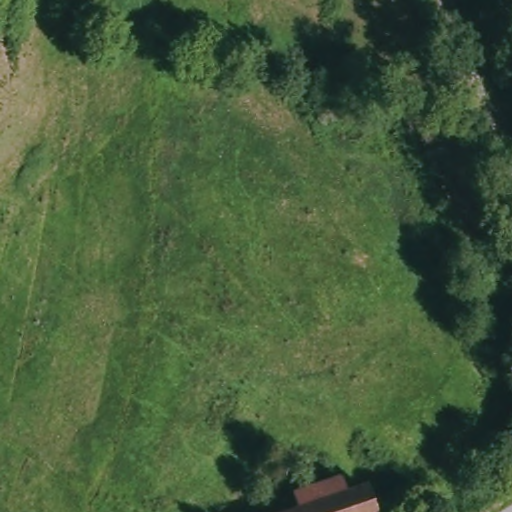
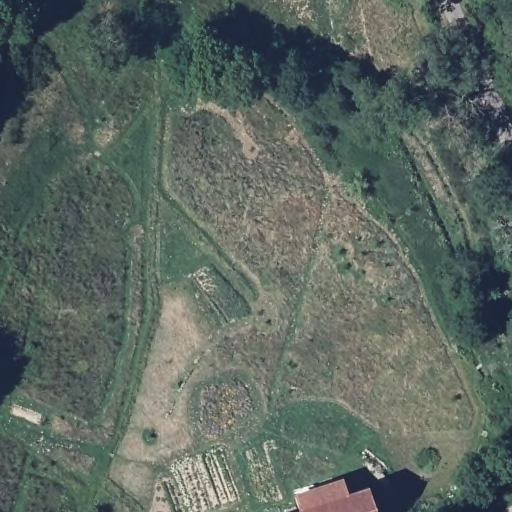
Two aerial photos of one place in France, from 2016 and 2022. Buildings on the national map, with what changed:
unchanged [(349,498),(371,491),(378,512),(309,512),(302,492),(342,480),(349,498)]

